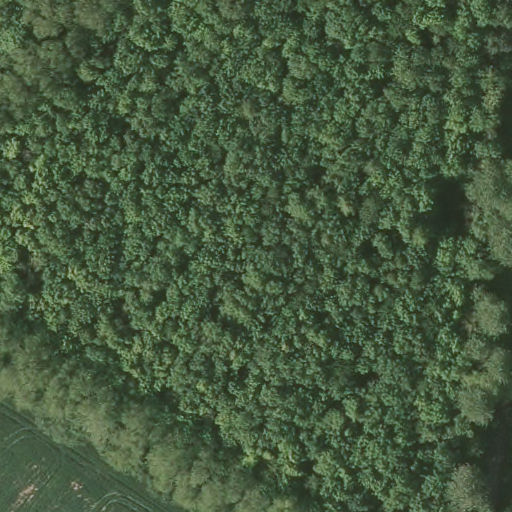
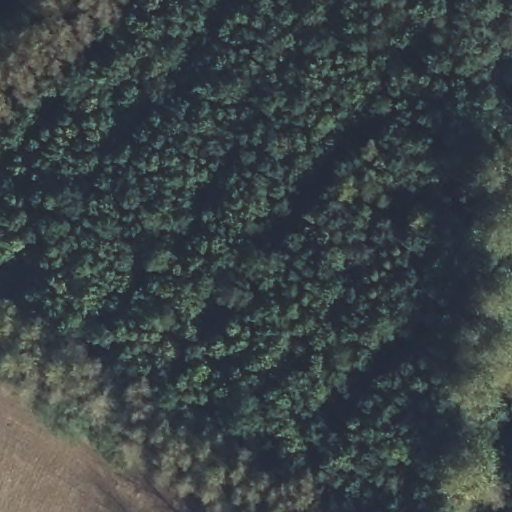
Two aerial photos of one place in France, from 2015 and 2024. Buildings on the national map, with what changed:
unchanged [(486,177),(482,221),(462,220),(467,175),(486,177)]

